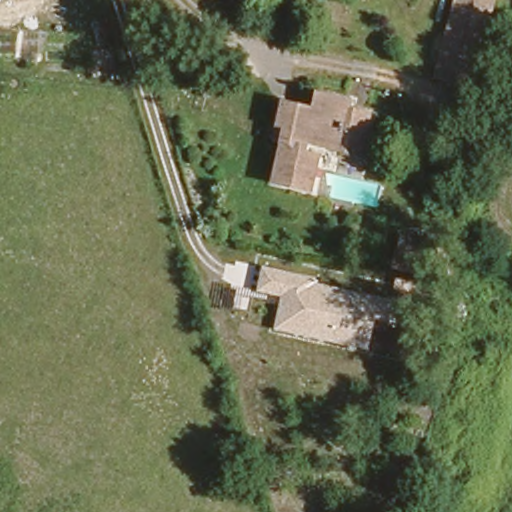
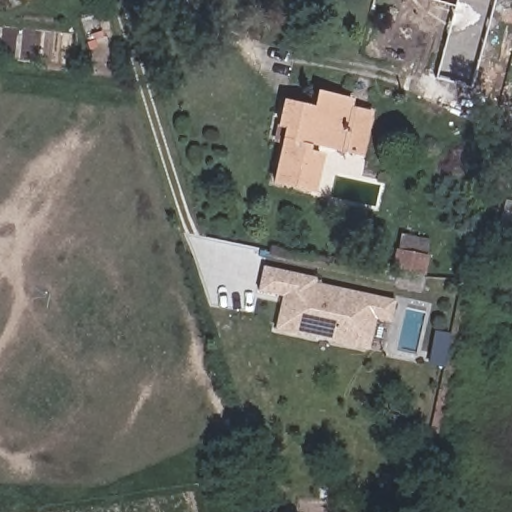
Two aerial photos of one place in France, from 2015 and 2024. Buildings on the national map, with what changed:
unchanged [(492,0),(472,85),(436,76),(453,0),(492,0)]
unchanged [(318,154),(311,186),(271,178),(279,138),(269,137),(273,118),(277,98),(311,106),(312,98),(315,86),(350,93),(347,105),(368,109),(361,148),(325,138),(306,132),(303,149),(318,154)]
unchanged [(402,241),(432,247),(428,272),(397,266),(402,241)]
unchanged [(318,276),(316,282),(397,298),(392,322),(375,319),(369,350),(276,331),(281,296),(258,291),(263,265),(318,276)]

